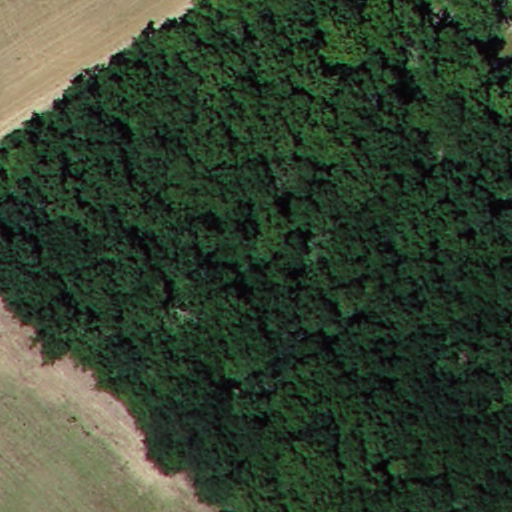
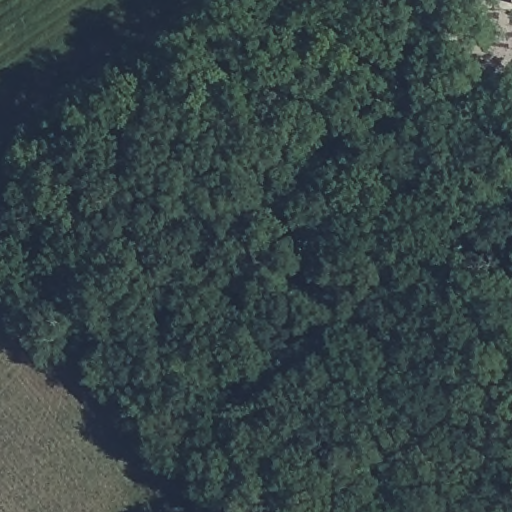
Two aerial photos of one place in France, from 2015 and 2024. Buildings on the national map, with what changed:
[]

